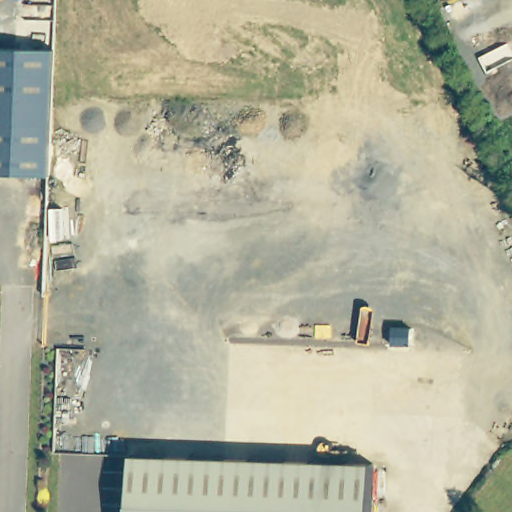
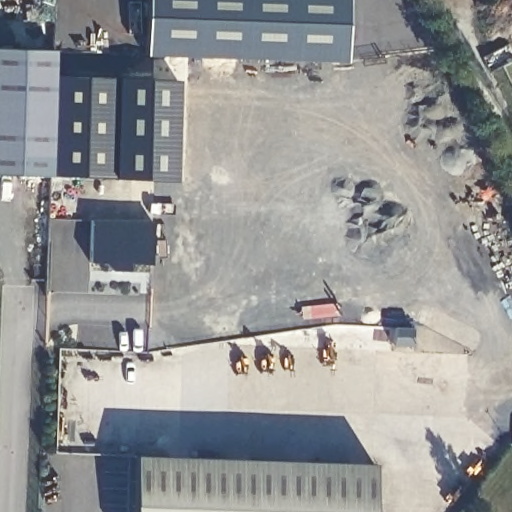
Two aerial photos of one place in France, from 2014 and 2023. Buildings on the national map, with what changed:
new [(345,61),(143,54),(147,0),(347,0),(345,61)]
unchanged [(53,86),(50,175),(0,174),(0,47),(54,49),(53,86)]
new [(174,180),(50,175),(53,86),(53,76),(178,79),(174,180)]
new [(150,264),(130,262),(128,270),(107,270),(108,263),(89,262),(91,219),(152,221),(150,264)]
unchanged [(131,512),(133,450),(143,450),(141,512),(131,512)]
unchanged [(371,512),(141,512),(143,450),(373,460),(371,512)]

